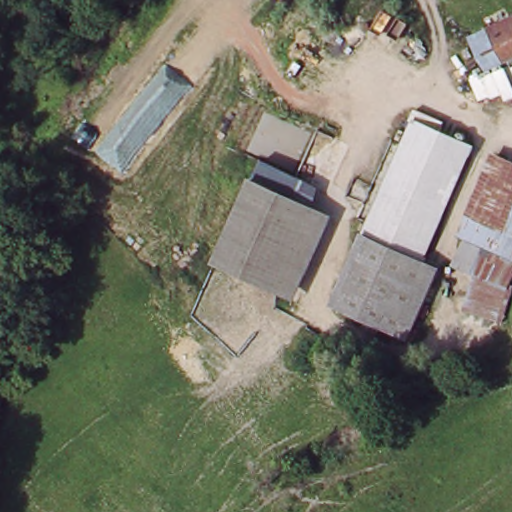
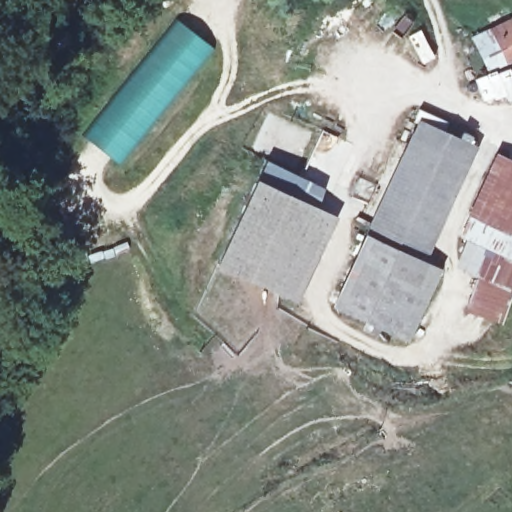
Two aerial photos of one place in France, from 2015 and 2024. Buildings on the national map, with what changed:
new [(81,135),(174,19),(211,47),(119,165),(81,135)]
unchanged [(484,37),(499,28),(512,21),(512,55),(499,63),(484,37)]
unchanged [(472,146),(419,262),(424,263),(393,332),(334,305),(416,120),(472,146)]
unchanged [(512,165),(512,229),(468,210),(492,156),(512,165)]
unchanged [(329,209),(292,292),(231,265),(268,182),(329,209)]
unchanged [(458,234),(468,210),(512,229),(512,271),(505,287),(454,263),(465,237),(458,234)]

